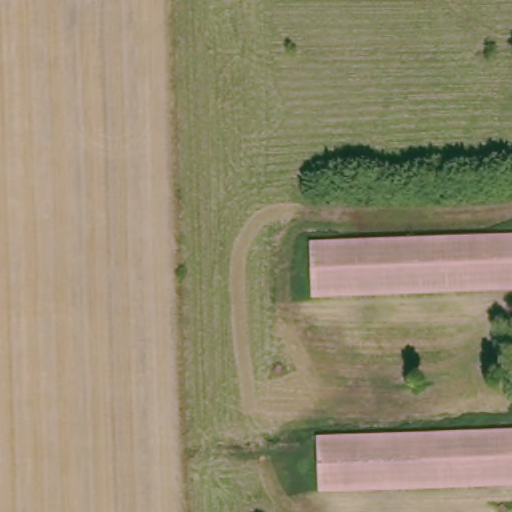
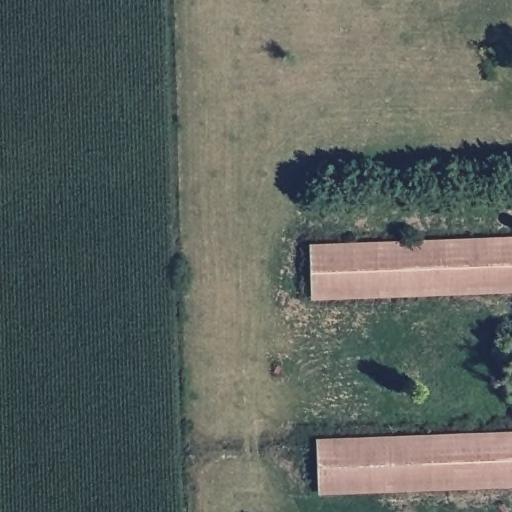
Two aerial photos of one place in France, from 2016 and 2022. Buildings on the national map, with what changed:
unchanged [(512,241),(512,289),(316,294),(315,247),(512,241)]
unchanged [(321,488),(320,441),(512,436),(512,483),(321,488)]

